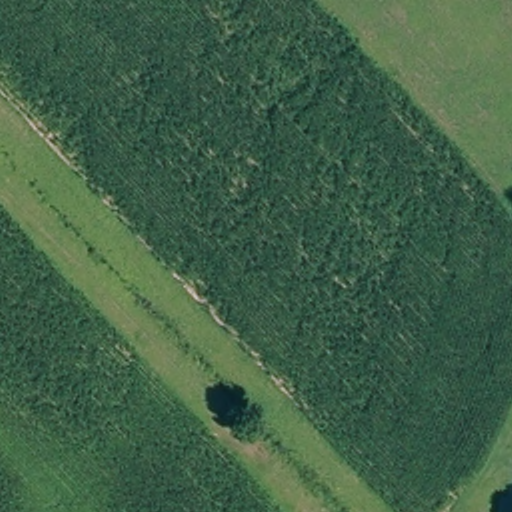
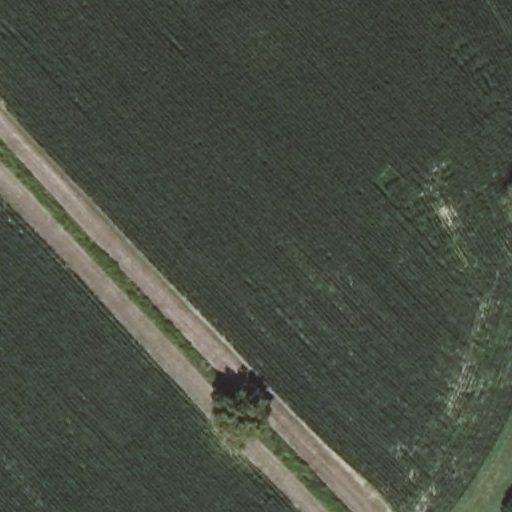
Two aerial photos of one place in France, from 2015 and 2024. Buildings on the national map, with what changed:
[]

